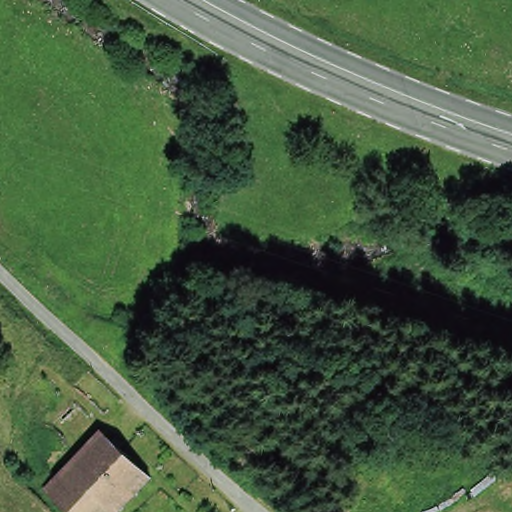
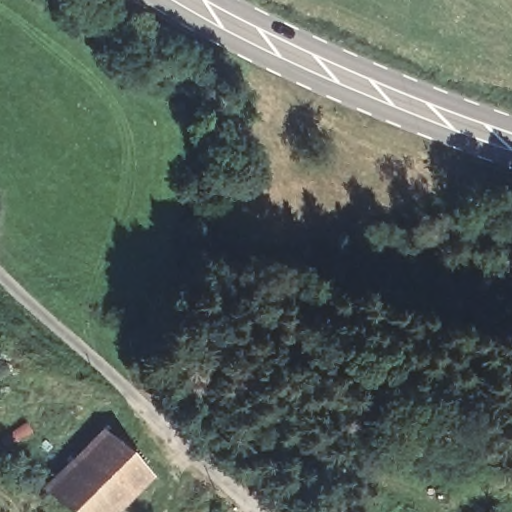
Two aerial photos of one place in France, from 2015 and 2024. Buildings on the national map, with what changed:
unchanged [(70,512),(40,484),(98,425),(147,471),(107,512),(70,512)]

